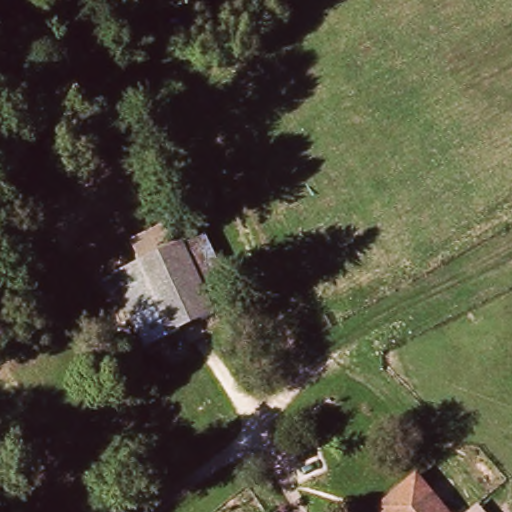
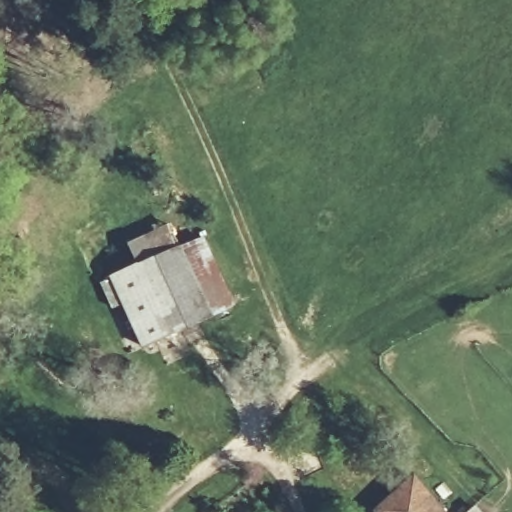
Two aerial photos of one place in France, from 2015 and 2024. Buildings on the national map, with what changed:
unchanged [(188,248),(220,311),(156,347),(122,282),(188,248)]
unchanged [(419,484),(444,512),(389,512),(419,484)]
unchanged [(476,505),(483,512),(469,512),(476,505)]

